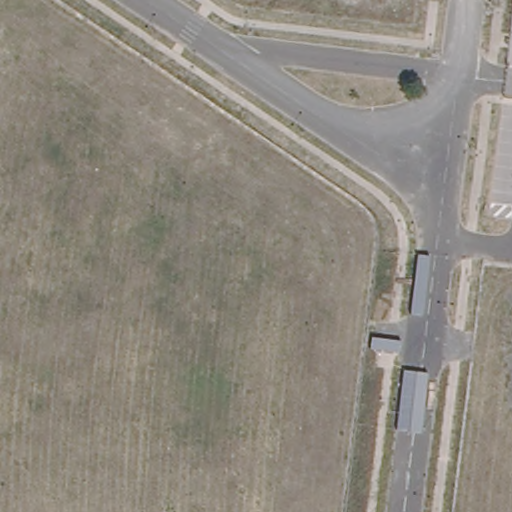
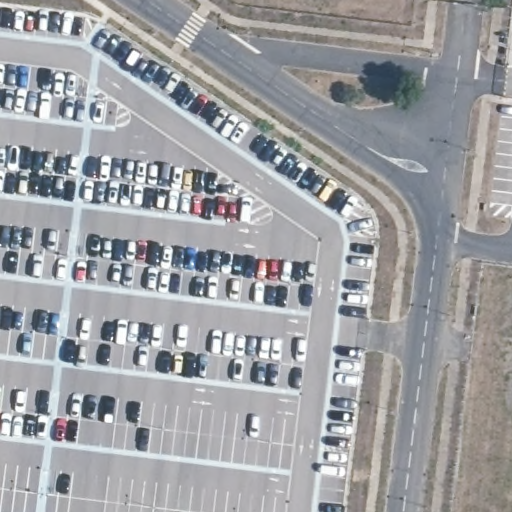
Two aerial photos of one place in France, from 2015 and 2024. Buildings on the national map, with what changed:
[]

